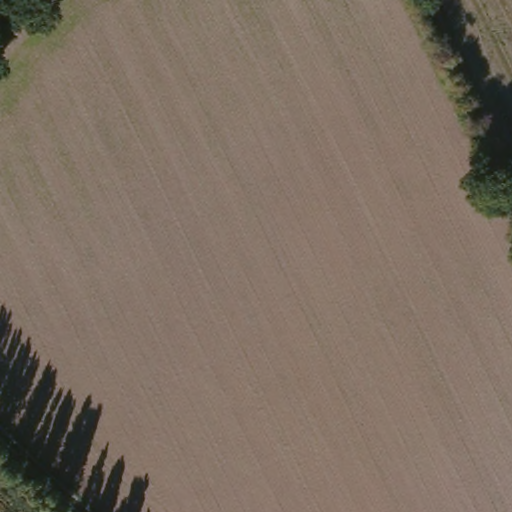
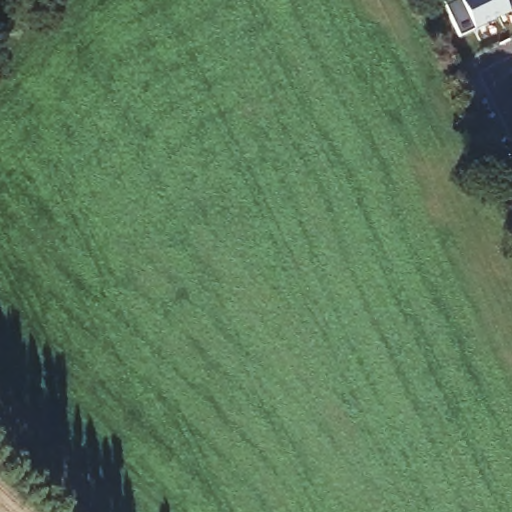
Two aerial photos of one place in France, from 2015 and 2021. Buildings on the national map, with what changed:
new [(512,11),(460,36),(444,0),(512,0),(512,11)]

